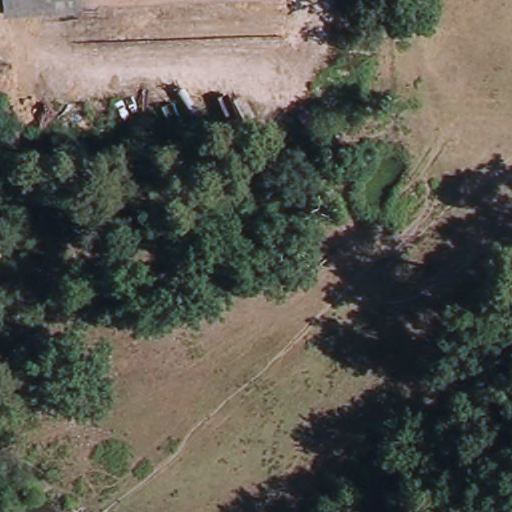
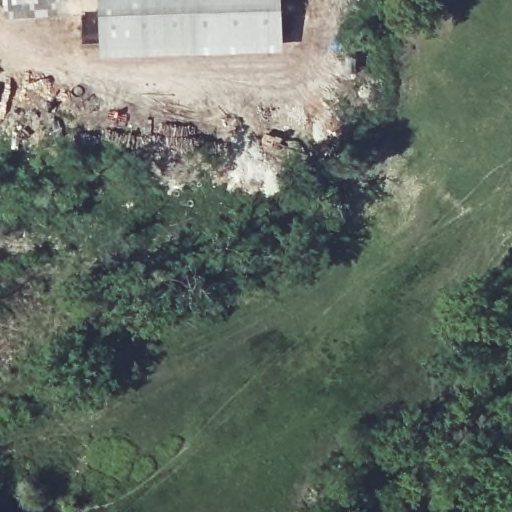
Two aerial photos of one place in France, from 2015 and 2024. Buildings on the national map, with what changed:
demolished [(104,12),(81,13),(81,18),(6,22),(5,0),(285,0),(285,3),(104,8),(104,12)]
new [(102,60),(100,11),(85,12),(85,15),(8,21),(6,0),(284,0),(285,53),(102,60)]

